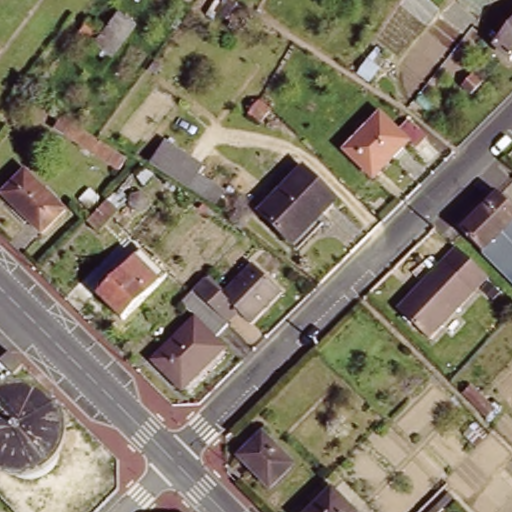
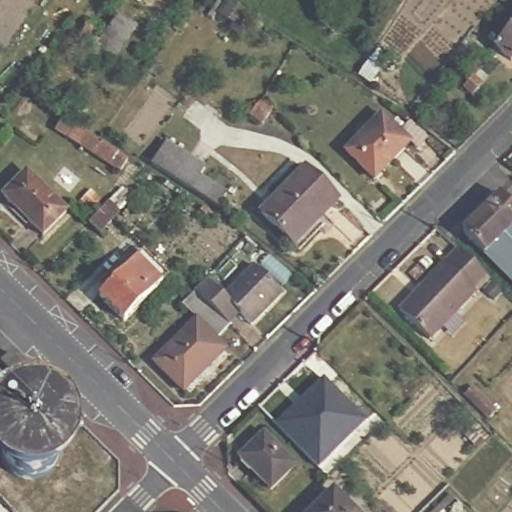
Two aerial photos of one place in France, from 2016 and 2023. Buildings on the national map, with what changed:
unchanged [(238,29),(216,14),(224,0),(229,0),(249,12),(238,29)]
unchanged [(95,45),(119,12),(138,26),(113,59),(95,45)]
unchanged [(495,41),(512,19),(512,54),(511,55),(495,41)]
unchanged [(472,75),(483,85),(472,96),(462,87),(472,75)]
unchanged [(251,111),(247,108),(253,100),(271,111),(261,123),(249,116),(248,115),(251,111)]
unchanged [(3,111),(0,114),(0,109),(3,111)]
unchanged [(408,135),(374,171),(347,146),(381,110),(408,135)]
unchanged [(95,138),(118,155),(125,161),(118,171),(54,128),(62,116),(95,138)]
unchanged [(150,163),(165,140),(193,158),(203,164),(198,172),(228,195),(219,208),(177,180),(150,163)]
unchanged [(339,202),(297,246),(264,213),(306,170),(339,202)]
unchanged [(70,211),(48,233),(9,193),(32,171),(70,211)]
unchanged [(504,194),(512,202),(512,274),(469,230),(504,194)]
unchanged [(107,202),(117,211),(98,231),(88,221),(107,202)]
unchanged [(167,272),(122,315),(99,291),(144,247),(167,272)]
unchanged [(424,291),(421,289),(460,249),(490,277),(431,339),(404,311),(424,291)]
unchanged [(234,320),(223,332),(188,298),(198,286),(210,274),(229,292),(261,260),(288,288),(256,320),(244,307),(233,319),(234,320)]
unchanged [(161,357),(201,316),(228,346),(190,386),(161,357)]
unchanged [(9,352),(23,367),(14,376),(0,362),(0,360),(9,352)]
unchanged [(2,378),(0,380),(0,376),(2,378)]
new [(365,422),(319,468),(276,424),(323,379),(365,422)]
unchanged [(263,432),(295,465),(271,489),(238,456),(263,432)]
unchanged [(338,488),(361,512),(314,512),(338,488)]

